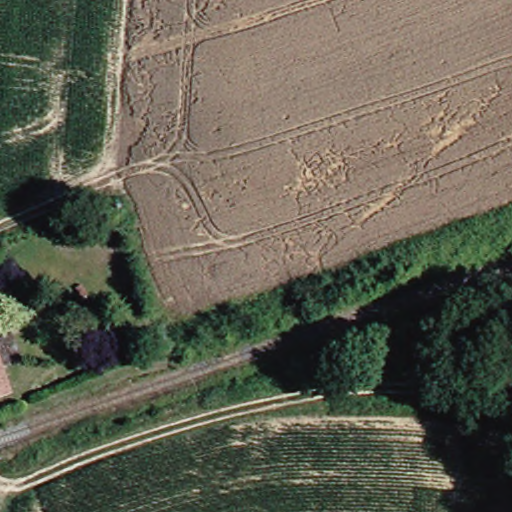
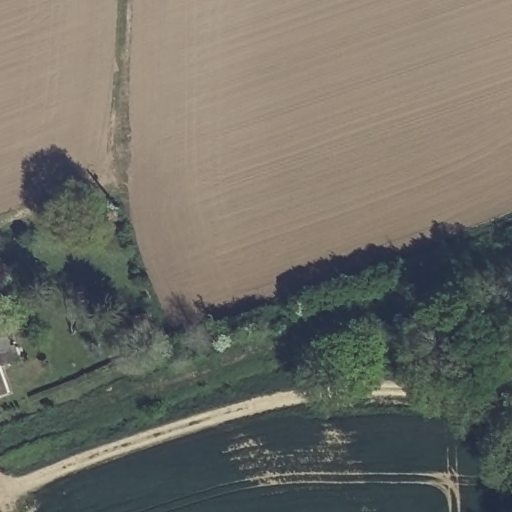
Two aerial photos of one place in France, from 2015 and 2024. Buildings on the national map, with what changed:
unchanged [(0,390),(0,361),(10,387),(0,390)]

